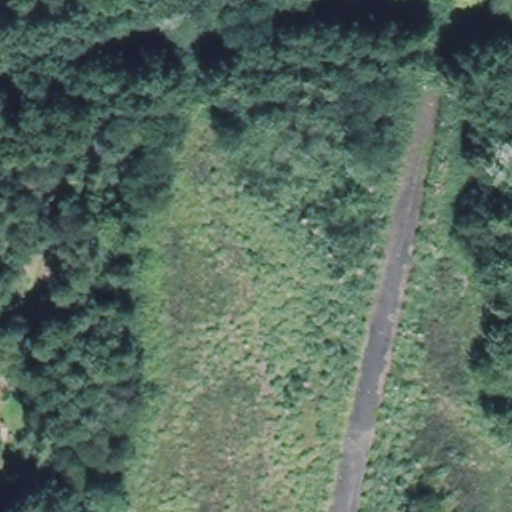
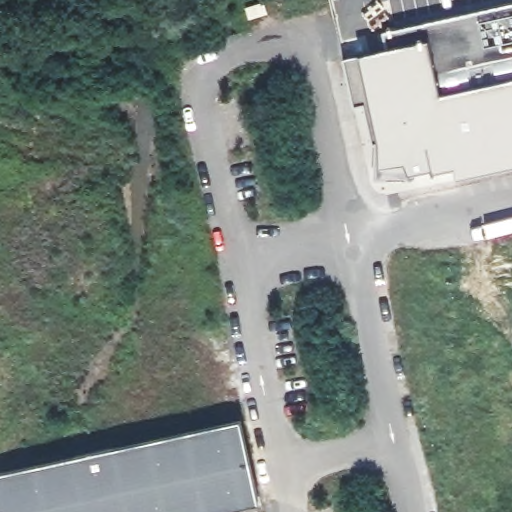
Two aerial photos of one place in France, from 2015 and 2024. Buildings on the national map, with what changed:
new [(455,166),(435,171),(433,166),(412,172),(408,163),(379,166),(379,140),(373,141),(363,103),(356,104),(345,59),(363,55),(387,49),(383,31),(512,2),(512,165),(458,177),(455,166)]
new [(241,420),(259,503),(217,512),(0,512),(0,473),(241,420)]

